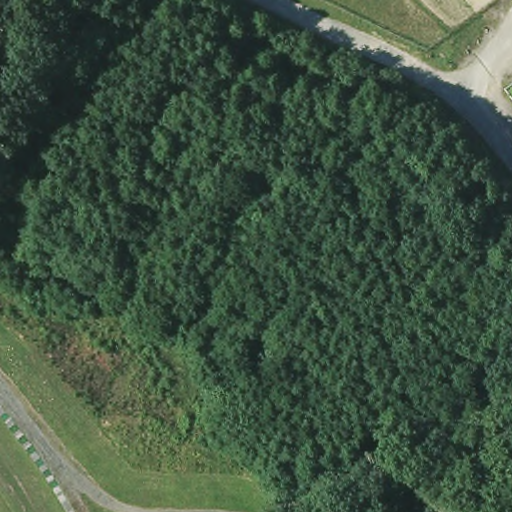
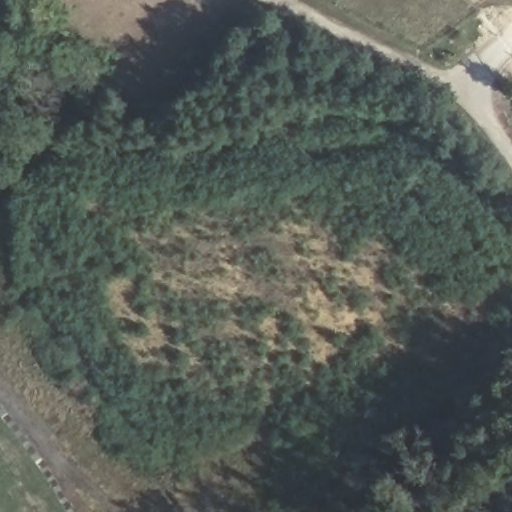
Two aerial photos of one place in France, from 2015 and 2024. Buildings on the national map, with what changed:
[]

